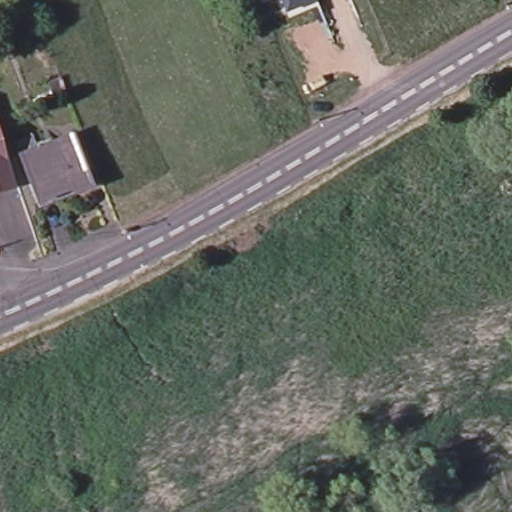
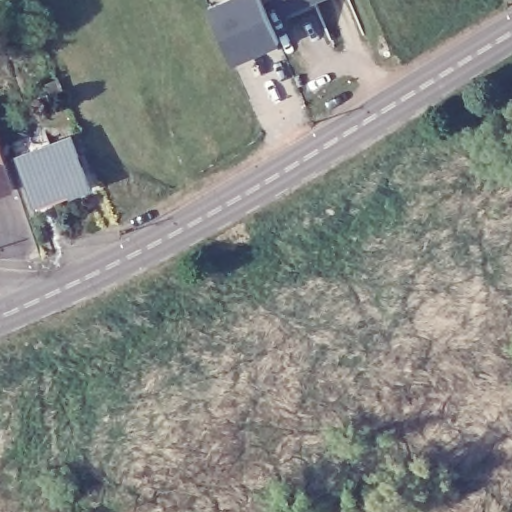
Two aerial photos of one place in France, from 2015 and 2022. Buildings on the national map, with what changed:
new [(262,41),(230,55),(220,34),(208,5),(218,0),(261,0),(272,26),(277,35),(262,41)]
unchanged [(285,15),(279,0),(318,0),(285,15)]
unchanged [(69,189),(34,202),(17,154),(71,134),(90,186),(70,192),(69,189)]
unchanged [(0,191),(0,141),(13,187),(0,191)]

